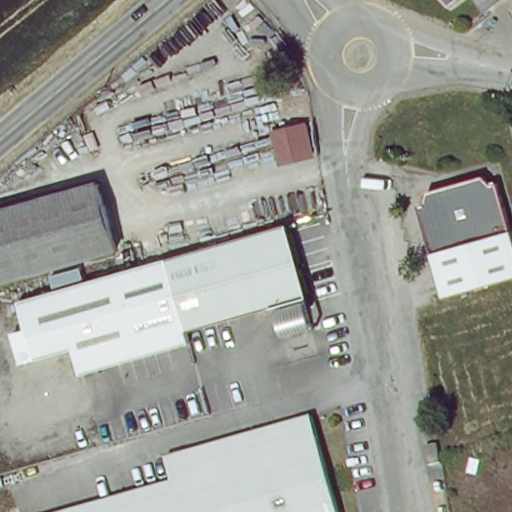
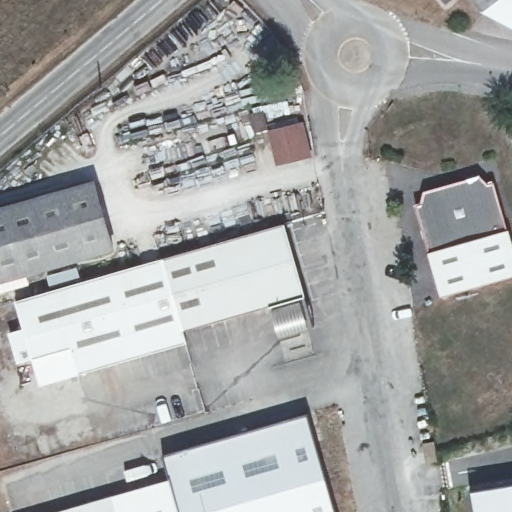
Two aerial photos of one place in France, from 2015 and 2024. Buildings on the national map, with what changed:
unchanged [(426,0),(439,0),(430,6),(426,0)]
unchanged [(473,0),(480,0),(475,3),(473,0)]
unchanged [(300,126),(307,154),(275,161),(268,134),(300,126)]
unchanged [(424,188),(462,177),(480,172),(489,179),(495,178),(509,227),(430,252),(415,200),(421,199),(424,188)]
unchanged [(117,243),(0,275),(0,205),(97,177),(117,243)]
unchanged [(12,334),(26,329),(17,299),(165,258),(284,224),(308,296),(187,332),(190,344),(81,374),(73,348),(35,359),(21,363),(12,334)]
unchanged [(509,227),(512,237),(512,273),(480,282),(442,293),(430,252),(509,227)]
unchanged [(273,314),(301,305),(310,330),(282,339),(273,314)]
unchanged [(175,473),(167,449),(309,409),(340,512),(29,512),(175,473)]
new [(470,491),(512,484),(512,512),(473,512),(470,491)]

